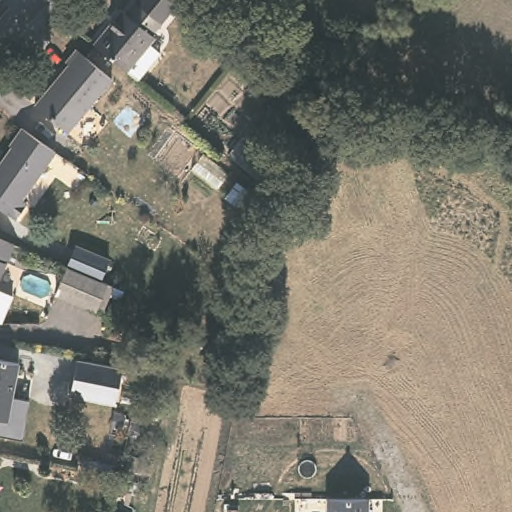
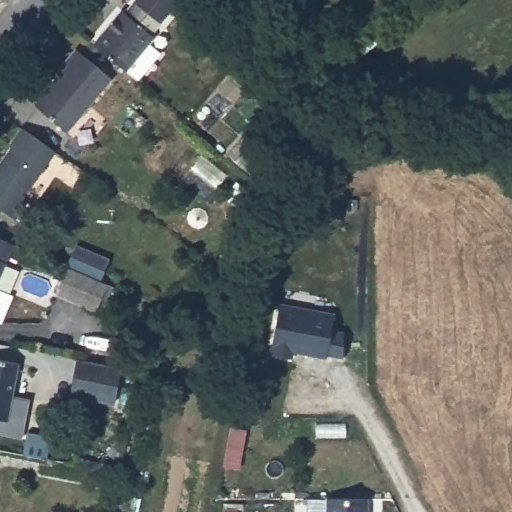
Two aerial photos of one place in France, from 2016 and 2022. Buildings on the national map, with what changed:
unchanged [(147,33),(150,34),(144,42),(155,51),(135,76),(94,44),(119,10),(122,13),(133,0),(168,0),(170,2),(147,33)]
unchanged [(110,81),(69,133),(37,108),(70,69),(65,64),(75,53),(110,81)]
unchanged [(56,151),(23,200),(27,204),(16,219),(0,208),(0,164),(12,146),(10,145),(21,128),(56,151)]
unchanged [(280,156),(270,169),(277,175),(273,180),(241,154),(256,136),(280,156)]
unchanged [(10,241),(0,268),(0,237),(10,241)]
unchanged [(115,287),(105,314),(59,295),(70,268),(115,287)]
unchanged [(14,289),(2,318),(0,317),(0,283),(14,289)]
new [(285,304),(340,313),(333,357),(300,352),(299,359),(277,355),(285,304)]
unchanged [(159,352),(156,374),(146,372),(149,351),(159,352)]
unchanged [(15,361),(5,421),(0,420),(0,358),(15,361)]
unchanged [(122,369),(117,402),(71,394),(78,359),(122,369)]
unchanged [(368,496),(368,512),(328,512),(330,497),(368,496)]

